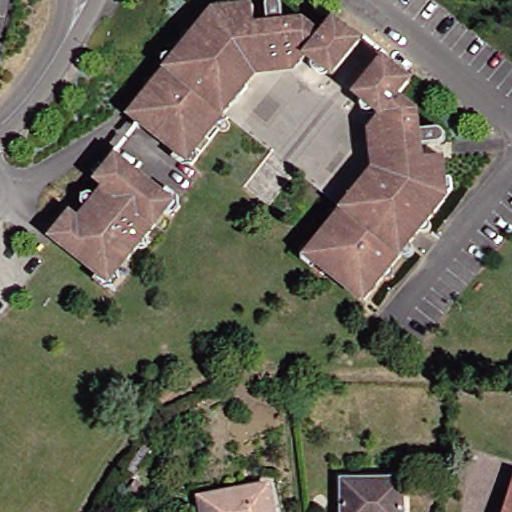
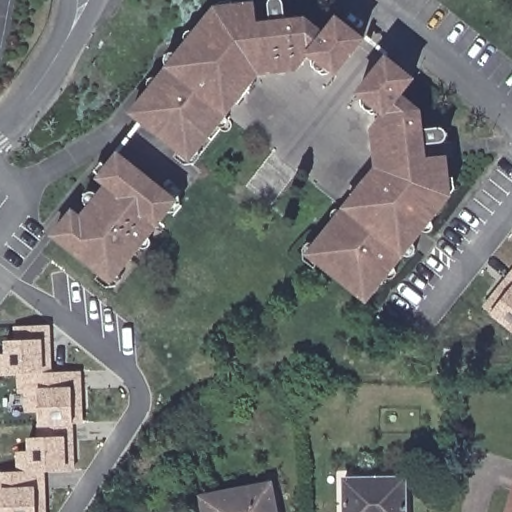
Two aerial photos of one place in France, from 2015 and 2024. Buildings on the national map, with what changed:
unchanged [(128,114),(164,68),(162,65),(161,62),(161,59),(163,56),(166,54),(169,52),(172,52),(175,54),(176,55),(209,12),(221,11),(221,5),(249,4),(253,24),(267,23),(263,5),(264,1),(265,0),(277,0),(278,0),(280,2),(283,20),(302,17),(321,34),(334,18),(362,40),(358,45),(379,62),(384,56),(409,77),(396,94),(417,110),(418,126),(439,125),(442,125),(445,127),(446,130),(446,134),(445,137),(443,140),(440,141),(421,142),(421,155),(444,155),(447,184),(441,185),(443,199),(411,238),(413,241),(414,245),(414,248),(412,251),(410,254),(407,255),(403,255),(400,255),(398,254),(364,298),(306,254),(342,207),(227,118),(190,162),(174,149),(134,118),(128,114)]
unchanged [(148,224),(153,227),(125,262),(120,258),(101,281),(49,239),(67,215),(78,224),(85,215),(83,213),(81,210),(81,206),(83,204),(85,201),(88,200),(91,200),(95,200),(96,201),(106,190),(95,181),(108,166),(114,159),(149,187),(167,201),(148,224)]
new [(483,307),(512,271),(512,330),(483,307)]
new [(15,341),(14,327),(51,326),(53,373),(82,372),(84,425),(74,425),(76,470),(47,471),(49,512),(3,512),(3,508),(0,508),(0,474),(16,473),(16,451),(28,450),(28,438),(40,437),(39,413),(23,414),(21,394),(18,394),(19,375),(0,376),(0,354),(5,354),(4,341),(15,341)]
unchanged [(398,512),(338,512),(337,479),(398,478),(398,512)]
unchanged [(503,512),(512,483),(512,512),(503,512)]
unchanged [(263,485),(268,512),(199,512),(197,498),(263,485)]

